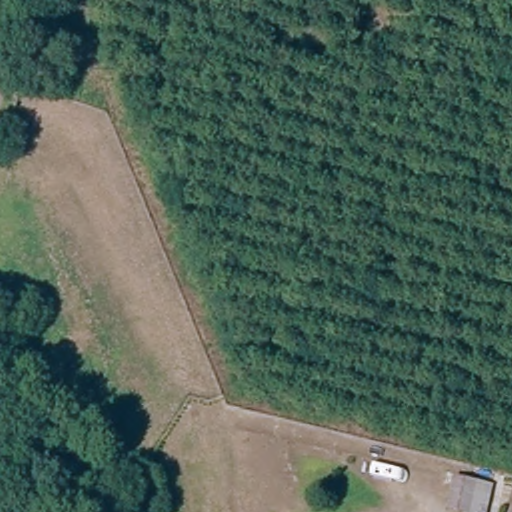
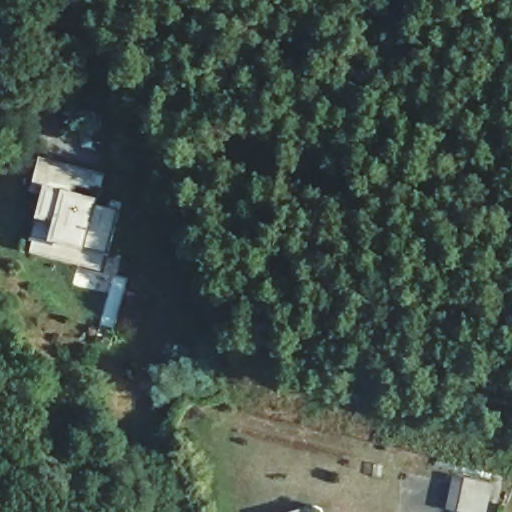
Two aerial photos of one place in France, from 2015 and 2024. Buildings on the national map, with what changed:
new [(43,213),(48,194),(32,190),(41,159),(57,163),(82,169),(105,175),(101,189),(79,184),(75,196),(121,208),(109,252),(106,252),(57,239),(56,244),(35,239),(32,238),(39,212),(43,213)]
new [(35,239),(56,244),(57,239),(106,252),(102,268),(32,249),(35,239)]
new [(458,483),(493,491),(488,512),(465,512),(452,509),(458,483)]
unchanged [(301,499),(304,512),(272,512),(271,506),(301,499)]

